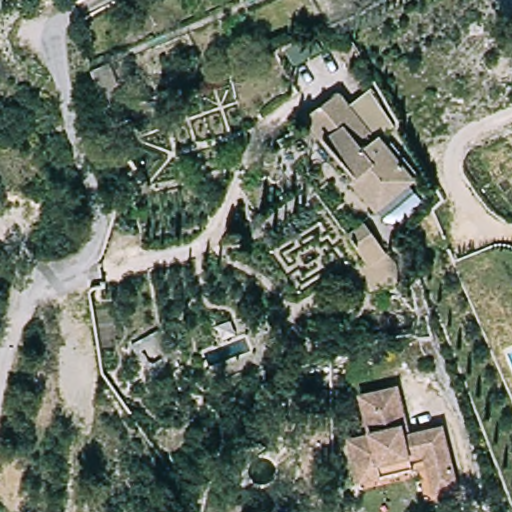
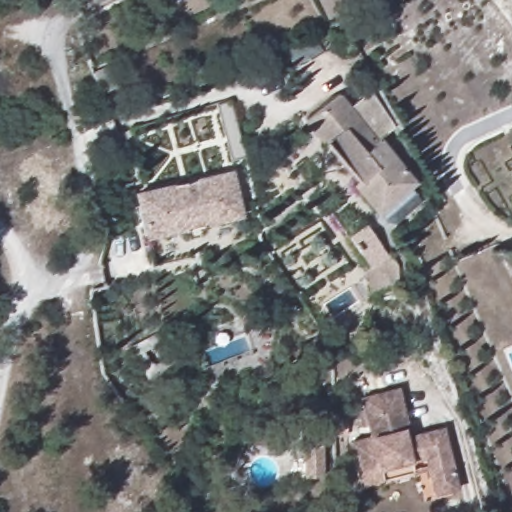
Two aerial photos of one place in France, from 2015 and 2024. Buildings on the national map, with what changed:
new [(314,36),(322,51),(295,66),(287,51),(314,36)]
unchanged [(401,134),(384,148),(388,154),(404,196),(375,219),(353,192),(358,188),(311,129),(347,101),(357,114),(372,101),(377,98),(380,103),(401,134)]
new [(234,171),(243,219),(144,239),(133,193),(234,171)]
unchanged [(380,244),(365,254),(350,235),(367,224),(380,244)]
unchanged [(400,268),(396,284),(373,289),(366,262),(386,251),(400,268)]
unchanged [(174,368),(145,383),(129,343),(160,329),(174,368)]
unchanged [(439,496),(436,484),(430,460),(414,464),(417,474),(364,489),(362,479),(353,447),(374,441),(363,402),(400,392),(413,441),(446,432),(459,479),(462,489),(439,496)]
new [(301,419),(330,417),(331,445),(324,445),(325,478),(304,479),(301,419)]

